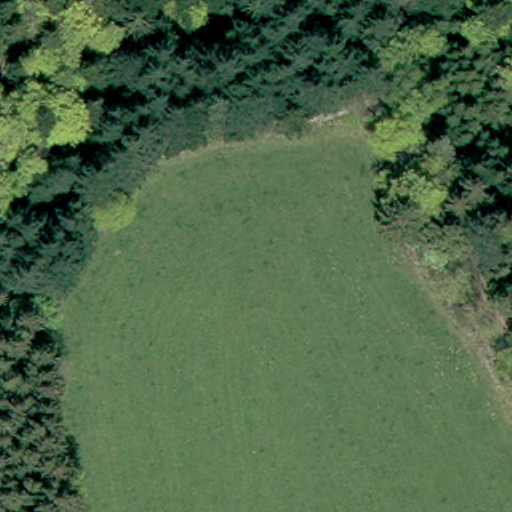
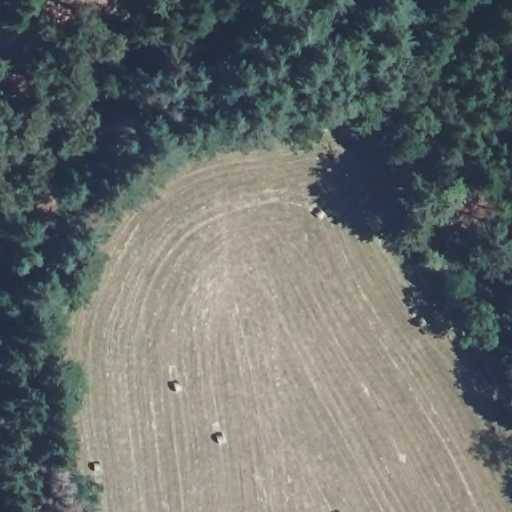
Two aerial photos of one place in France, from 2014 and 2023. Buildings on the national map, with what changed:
[]

